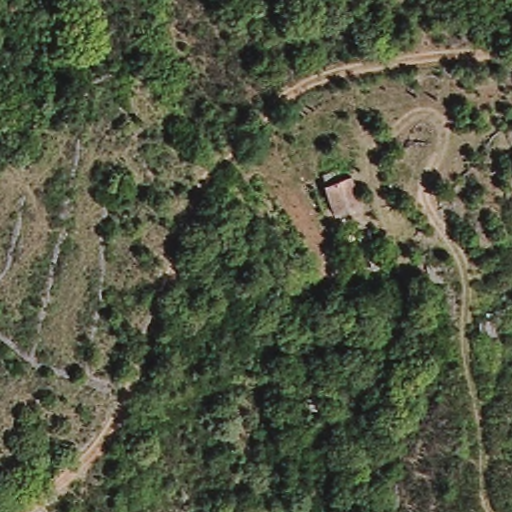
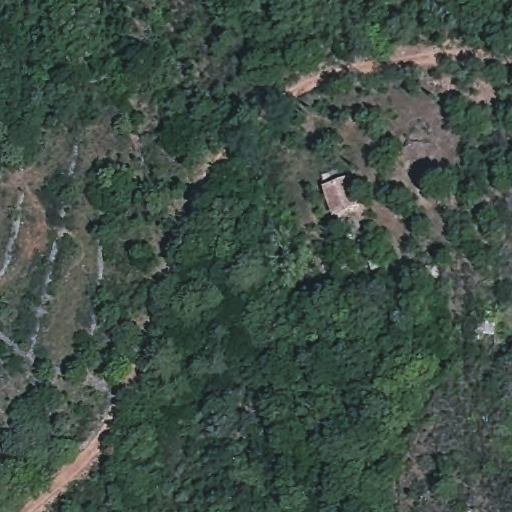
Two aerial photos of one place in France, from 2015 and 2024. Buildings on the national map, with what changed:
unchanged [(350,175),(357,214),(333,217),(327,178),(350,175)]

